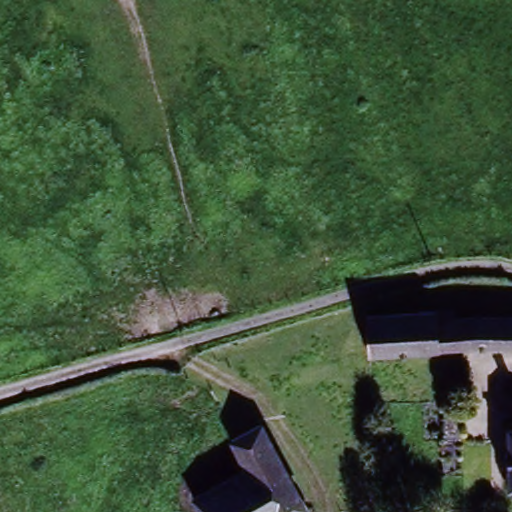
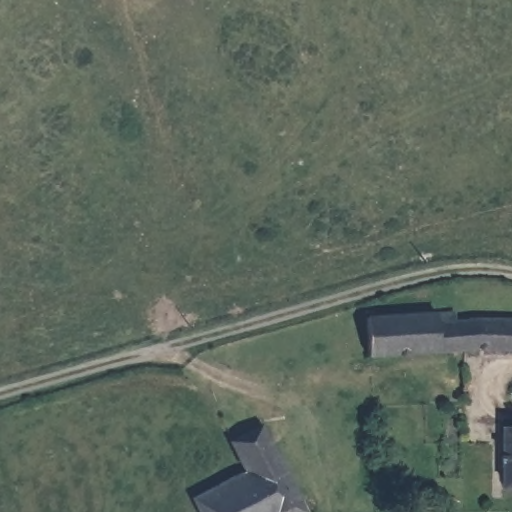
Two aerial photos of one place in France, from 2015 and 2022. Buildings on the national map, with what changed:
unchanged [(369,320),(441,315),(440,325),(481,322),(512,322),(512,354),(471,354),(371,360),(369,320)]
unchanged [(205,512),(199,501),(250,473),(235,446),(266,429),(311,512),(205,512)]
unchanged [(512,434),(512,494),(509,494),(509,434),(512,434)]

